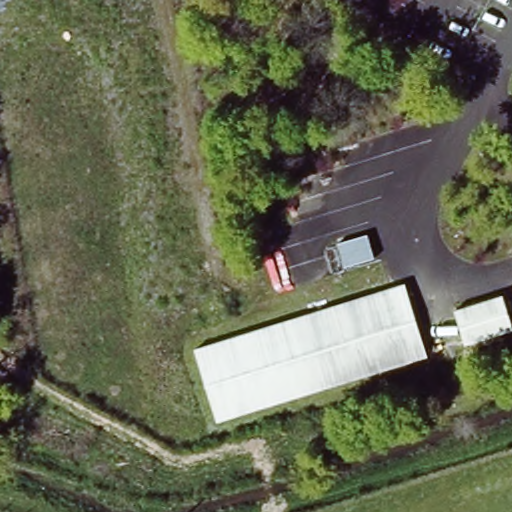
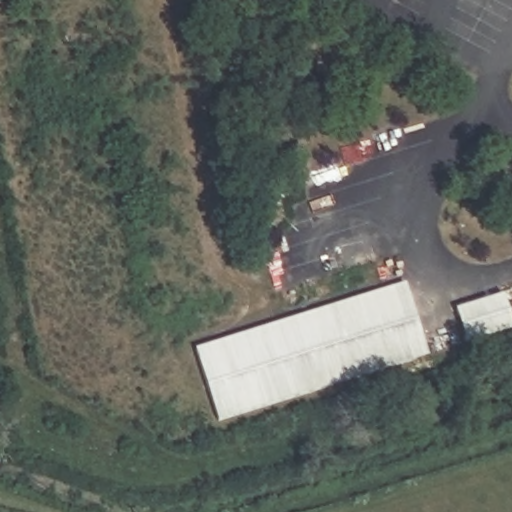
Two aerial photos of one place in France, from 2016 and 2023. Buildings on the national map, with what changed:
unchanged [(219,415),(200,349),(403,292),(425,358),(219,415)]
unchanged [(458,314),(506,299),(512,324),(512,331),(464,343),(458,314)]

